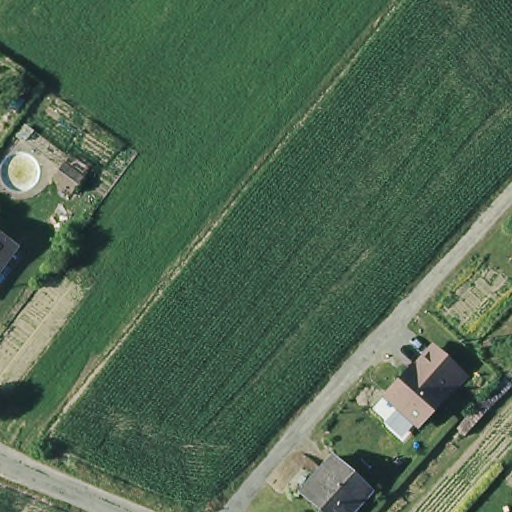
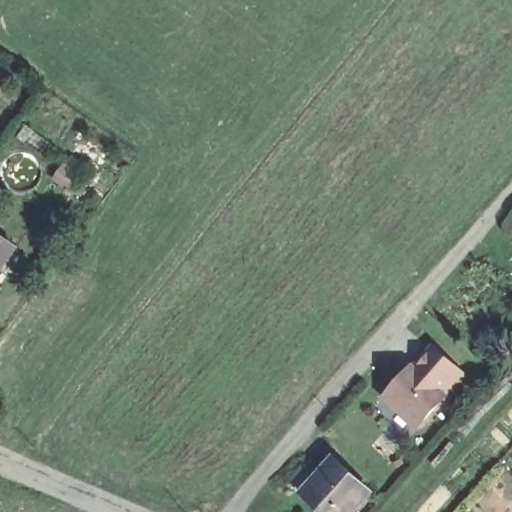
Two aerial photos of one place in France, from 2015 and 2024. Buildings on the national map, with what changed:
unchanged [(59,164),(78,178),(68,191),(48,177),(59,164)]
unchanged [(0,262),(0,241),(10,248),(0,262)]
unchanged [(467,375),(419,430),(381,398),(411,364),(414,367),(434,348),(467,375)]
unchanged [(366,491),(348,512),(316,512),(294,494),(328,457),(366,491)]

